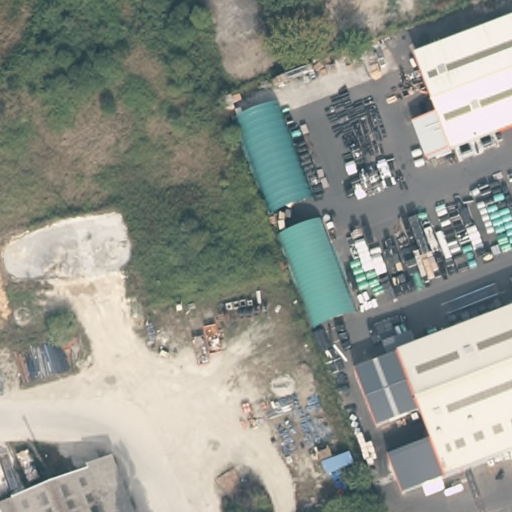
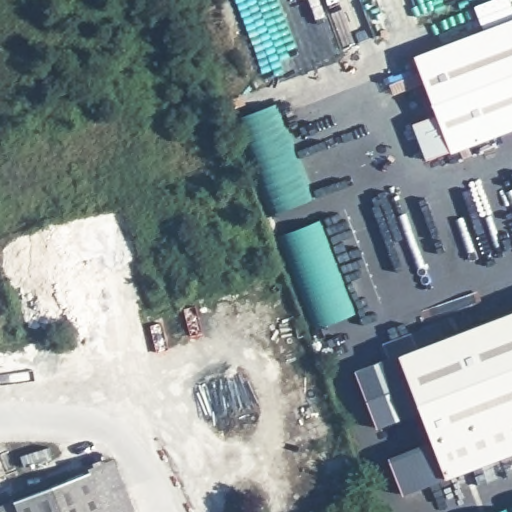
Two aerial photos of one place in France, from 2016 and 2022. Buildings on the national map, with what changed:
unchanged [(512,20),(512,128),(428,160),(414,123),(437,114),(415,57),(449,44),(512,20)]
unchanged [(272,210),(235,117),(275,103),(311,197),(272,210)]
unchanged [(317,330),(280,236),(317,221),(356,311),(317,330)]
unchanged [(440,463),(398,356),(512,312),(512,453),(445,478),(440,463)]
unchanged [(421,414),(376,428),(355,370),(398,356),(421,414)]
unchanged [(402,492),(387,456),(431,441),(440,463),(445,478),(402,492)]
unchanged [(131,512),(101,512),(85,470),(111,460),(131,512)]
unchanged [(85,470),(101,512),(0,512),(0,503),(85,470)]

